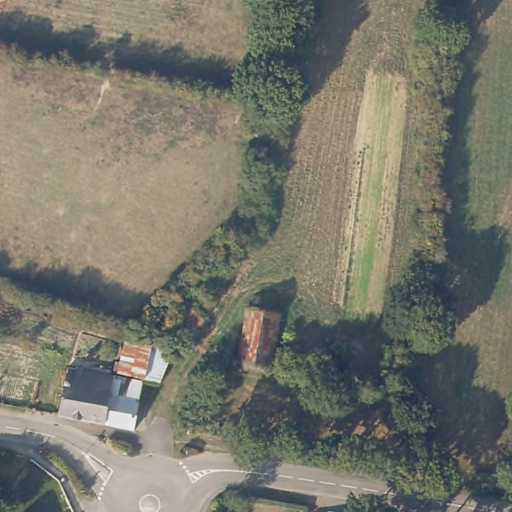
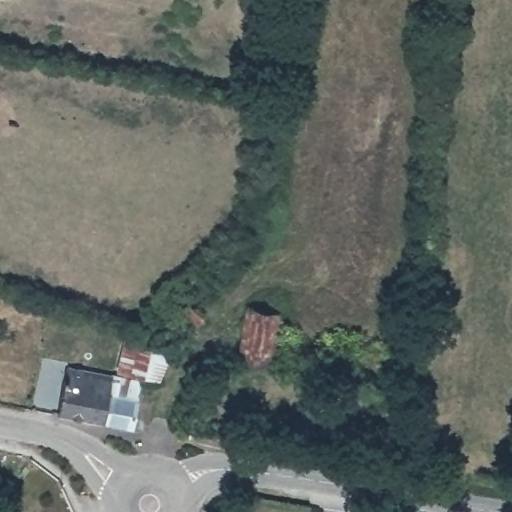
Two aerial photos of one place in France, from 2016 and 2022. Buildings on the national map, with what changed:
unchanged [(278,309),(271,367),(239,362),(244,306),(278,309)]
unchanged [(129,328),(128,338),(97,332),(99,323),(129,328)]
unchanged [(163,344),(154,379),(127,373),(135,340),(163,344)]
unchanged [(153,383),(145,428),(67,414),(77,368),(153,383)]
unchanged [(42,512),(37,512),(41,510),(42,512)]

